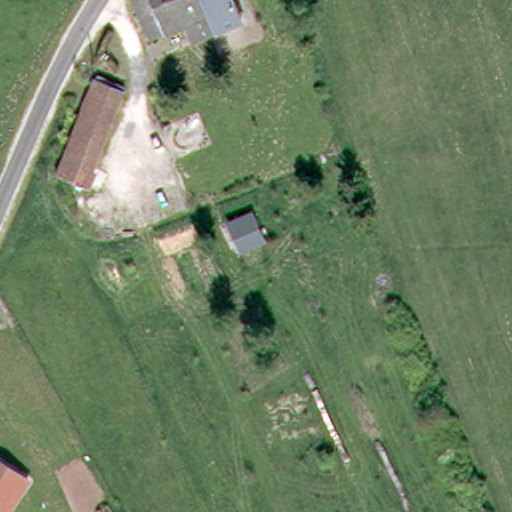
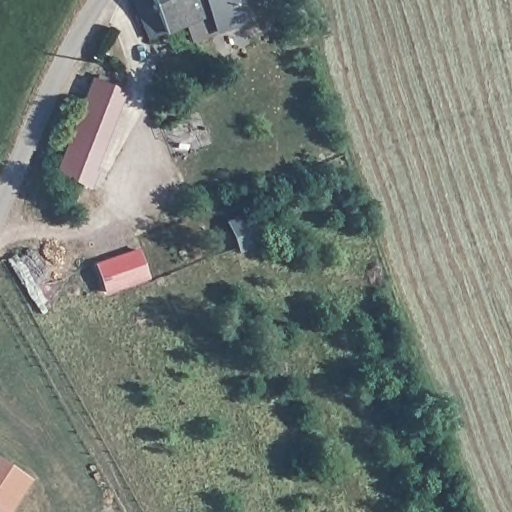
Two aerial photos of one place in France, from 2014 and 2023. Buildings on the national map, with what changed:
unchanged [(198,26),(163,41),(143,1),(146,0),(244,0),(253,21),(229,32),(206,43),(198,26)]
unchanged [(90,82),(120,94),(86,185),(58,174),(90,82)]
new [(105,293),(94,262),(138,247),(149,279),(105,293)]
unchanged [(15,466),(27,472),(24,477),(8,510),(0,505),(0,458),(15,466)]

